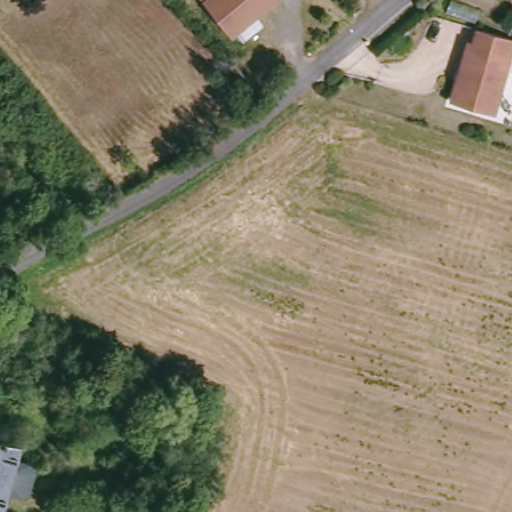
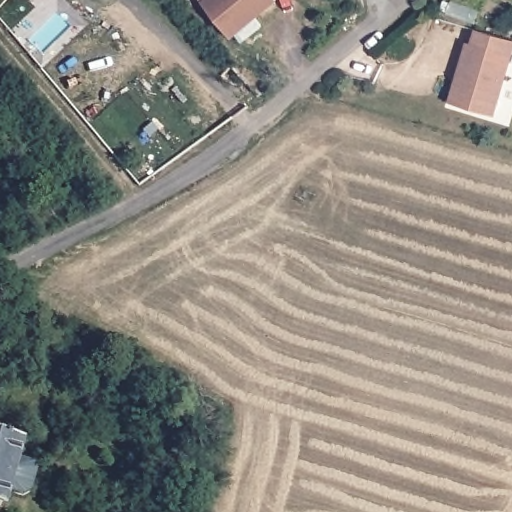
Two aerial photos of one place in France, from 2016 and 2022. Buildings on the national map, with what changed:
unchanged [(239,37),(206,0),(283,0),(239,37)]
unchanged [(472,45),(477,47),(481,33),(512,43),(512,70),(496,119),(457,106),(452,104),(461,77),(472,45)]
unchanged [(22,439),(18,454),(33,459),(37,467),(31,488),(23,492),(8,488),(2,507),(0,506),(0,433),(22,439)]

